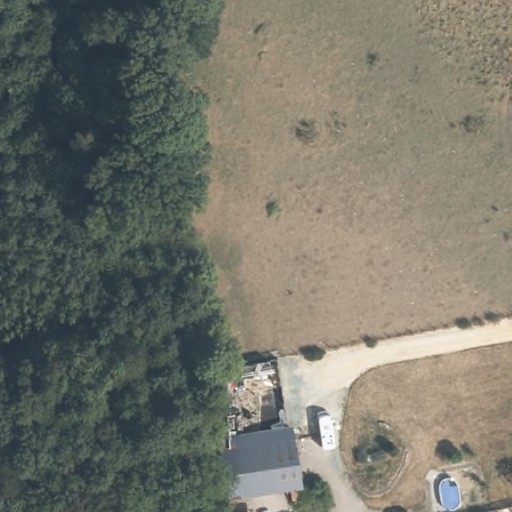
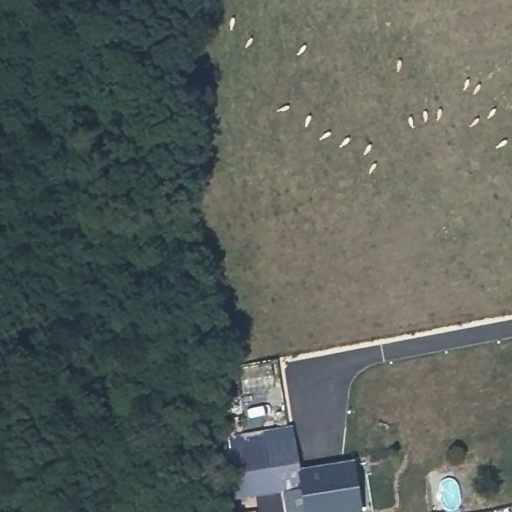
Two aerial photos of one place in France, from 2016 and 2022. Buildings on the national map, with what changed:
unchanged [(305,488),(230,500),(227,485),(221,448),(297,433),(305,488)]
new [(355,459),(361,512),(284,512),(281,492),(300,488),(305,488),(302,466),(355,459)]
unchanged [(490,511),(490,512),(488,512),(490,511)]

